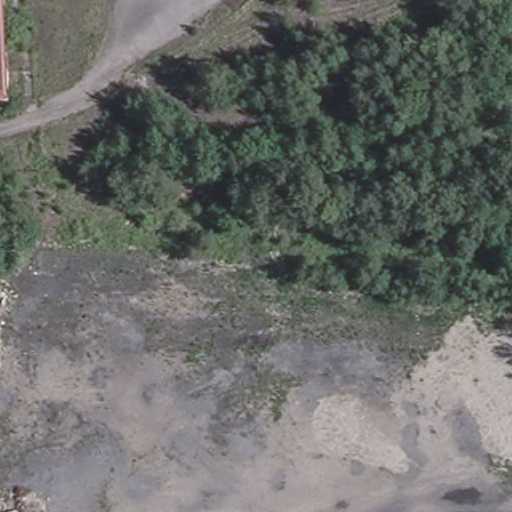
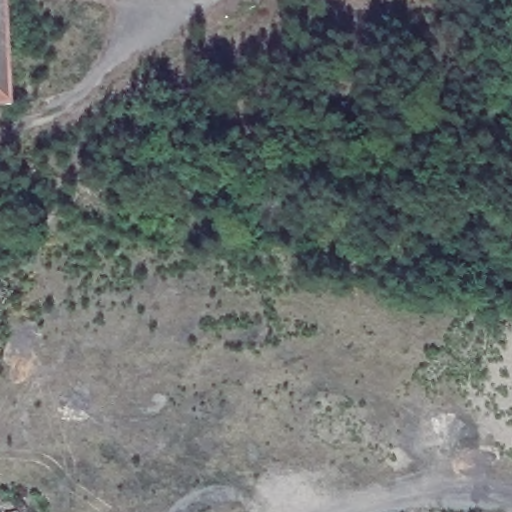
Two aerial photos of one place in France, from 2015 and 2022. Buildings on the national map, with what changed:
unchanged [(0,24),(0,0),(6,0),(7,24),(0,24)]
unchanged [(12,102),(0,103),(0,24),(7,24),(12,102)]

